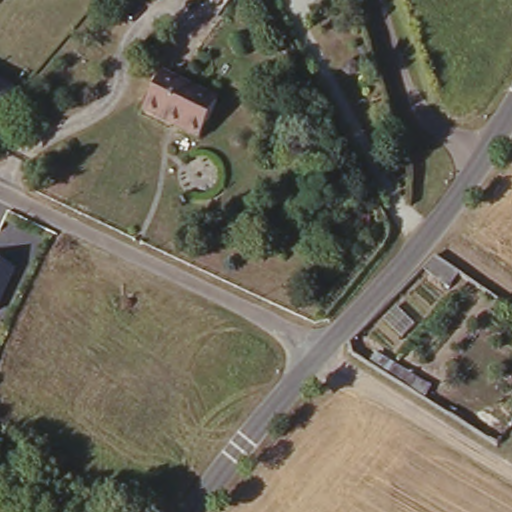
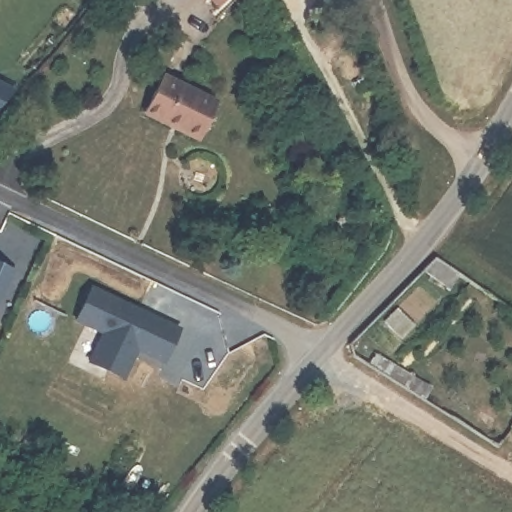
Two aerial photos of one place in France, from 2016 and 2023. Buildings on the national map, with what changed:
unchanged [(208,0),(226,0),(220,9),(208,0)]
unchanged [(219,111),(201,142),(145,111),(161,81),(219,111)]
unchanged [(16,91),(0,107),(0,84),(16,91)]
unchanged [(12,271),(0,298),(0,265),(12,271)]
new [(102,337),(75,324),(91,292),(179,335),(163,367),(136,354),(121,383),(88,366),(102,337)]

